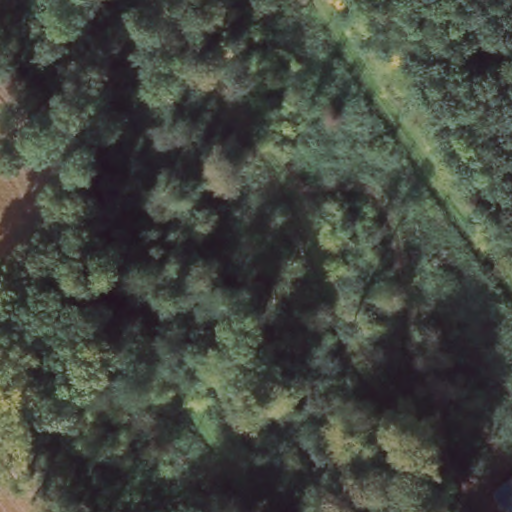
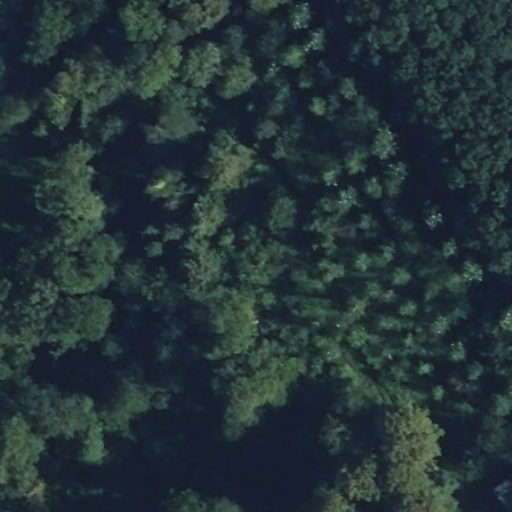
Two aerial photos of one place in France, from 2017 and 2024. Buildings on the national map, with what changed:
unchanged [(512,477),(512,511),(496,489),(512,477)]

